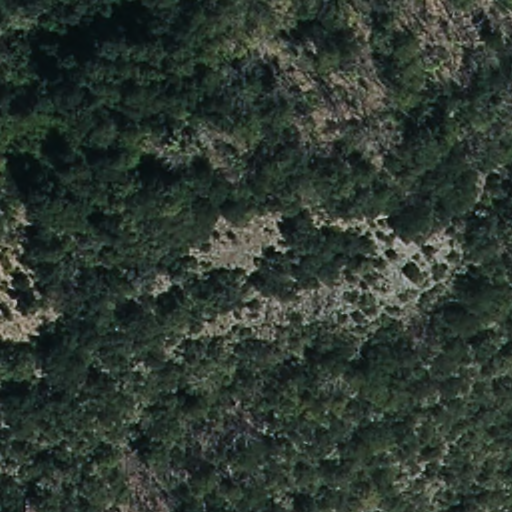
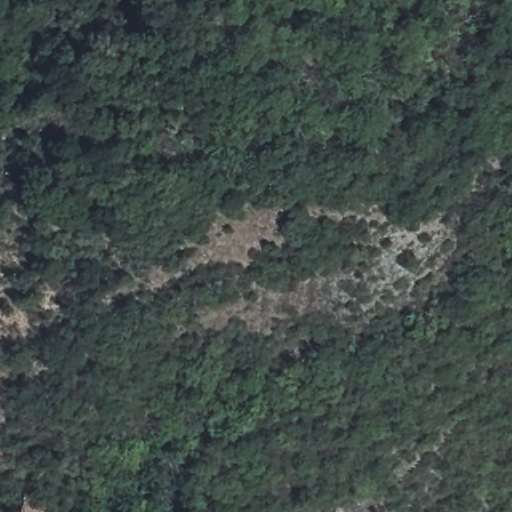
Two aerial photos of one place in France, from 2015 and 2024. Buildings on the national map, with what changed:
unchanged [(52,498),(49,512),(20,512),(26,492),(52,498)]

